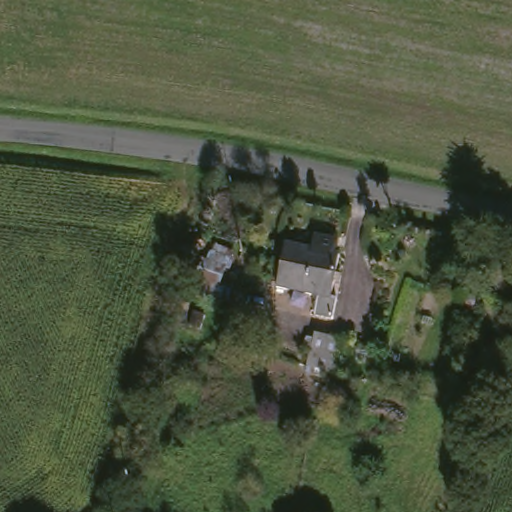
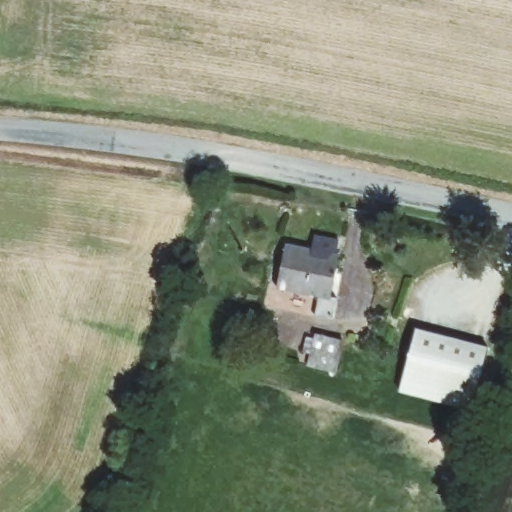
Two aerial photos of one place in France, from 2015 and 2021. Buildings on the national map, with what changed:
unchanged [(313,249),(315,234),(342,238),(336,295),(341,297),(338,319),(317,317),(318,296),(280,290),(285,245),(313,249)]
unchanged [(307,348),(301,346),(305,331),(311,333),(312,328),(343,336),(335,370),(303,362),(307,348)]
new [(416,328),(488,346),(470,410),(400,390),(416,328)]

